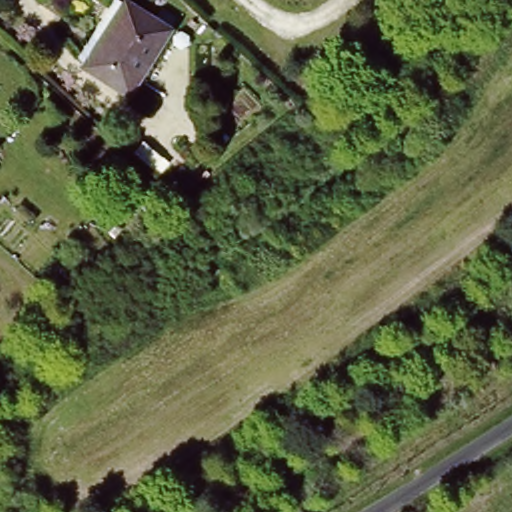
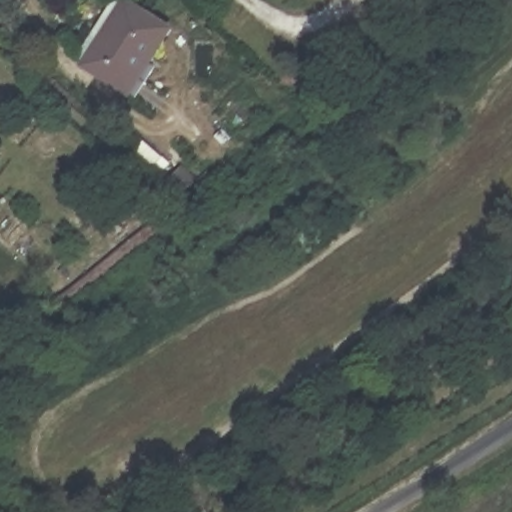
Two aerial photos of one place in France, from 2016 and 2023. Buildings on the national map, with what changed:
unchanged [(124,100),(81,68),(95,49),(90,46),(120,2),(132,11),(166,35),(124,100)]

